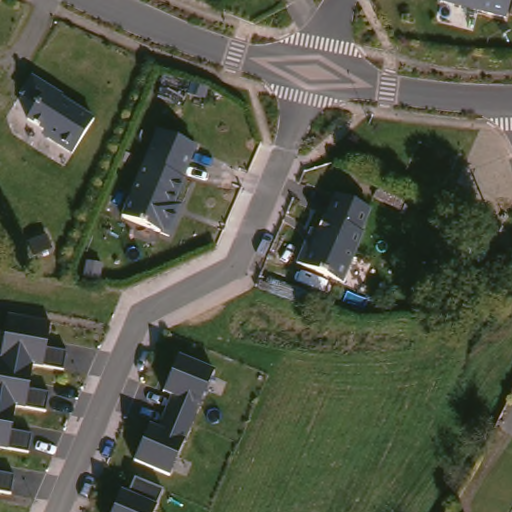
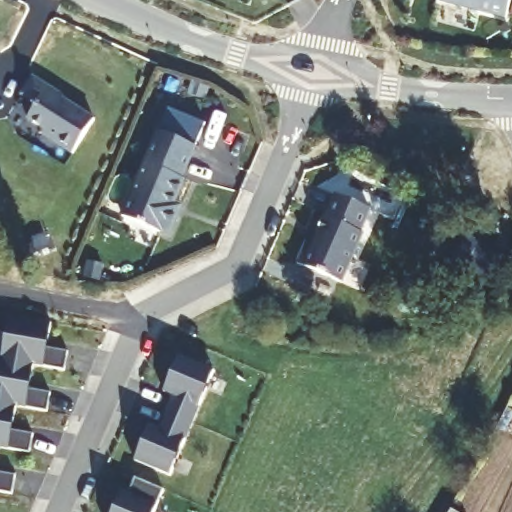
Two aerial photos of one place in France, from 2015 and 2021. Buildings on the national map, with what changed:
unchanged [(449,4),(450,0),(512,0),(512,16),(449,4)]
unchanged [(36,74),(67,94),(66,96),(98,117),(77,151),(52,135),(50,129),(32,116),(41,102),(25,92),(36,74)]
unchanged [(162,129),(199,143),(186,176),(189,177),(176,209),(184,212),(176,233),(128,215),(162,129)]
unchanged [(310,241),(316,243),(328,215),(330,216),(340,192),(375,207),(365,230),(367,231),(346,281),(301,261),(310,241)]
unchanged [(0,329),(0,309),(50,317),(48,343),(67,345),(62,362),(37,362),(32,382),(47,386),(45,403),(26,403),(17,429),(31,432),(27,452),(3,450),(0,462),(0,350),(5,331),(0,329)]
unchanged [(150,420),(160,426),(172,389),(164,382),(178,356),(217,372),(175,475),(134,461),(150,420)]
unchanged [(12,488),(0,487),(0,467),(15,472),(12,488)]
unchanged [(119,488),(128,492),(136,477),(166,489),(154,507),(162,511),(162,512),(110,512),(119,488)]

